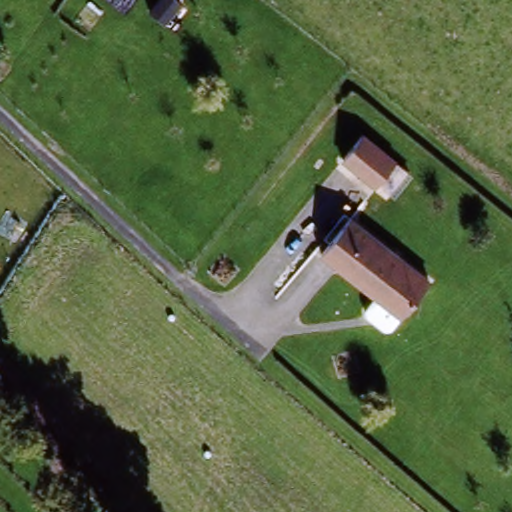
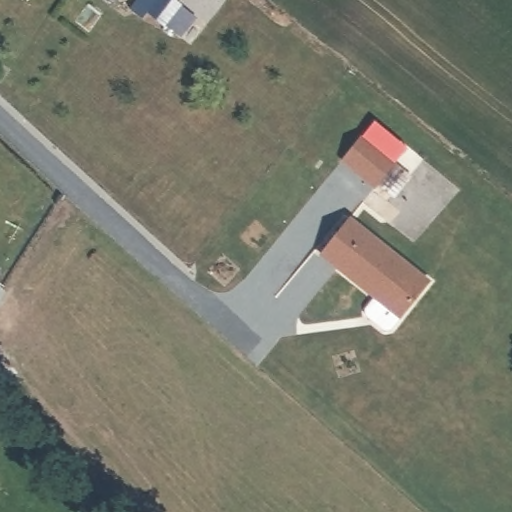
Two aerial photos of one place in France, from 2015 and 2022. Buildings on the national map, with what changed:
unchanged [(399,161),(371,188),(338,156),(366,128),(399,161)]
unchanged [(430,276),(389,333),(363,314),(374,299),(316,253),(352,213),(430,276)]

